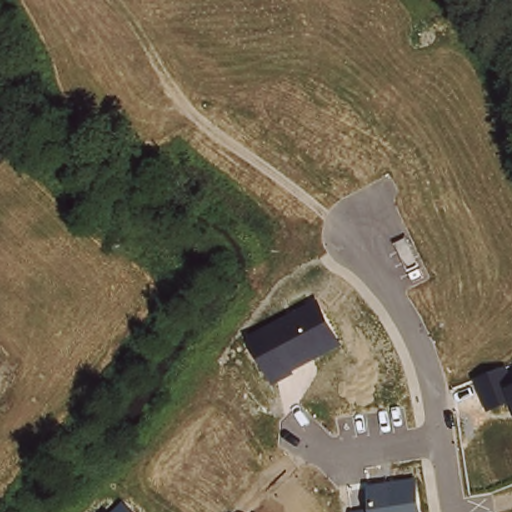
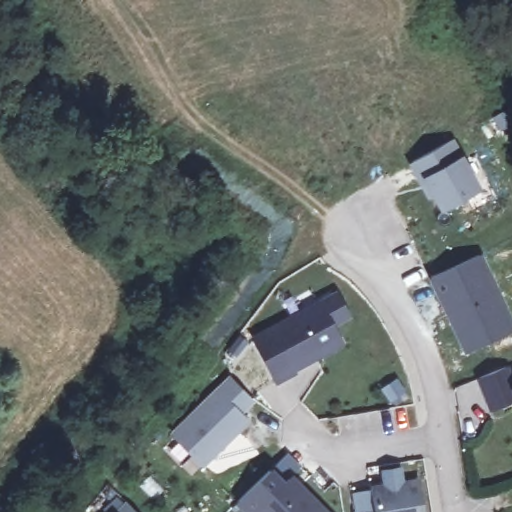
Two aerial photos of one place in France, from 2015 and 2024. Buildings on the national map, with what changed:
new [(442,211),(435,198),(429,200),(410,162),(453,137),(465,157),(483,191),(442,211)]
new [(512,312),(512,321),(469,342),(434,270),(480,247),(512,312)]
unchanged [(345,345),(295,370),(298,375),(275,386),(249,338),(320,298),(345,345)]
unchanged [(475,378),(510,365),(512,371),(512,403),(489,411),(475,378)]
new [(230,375),(256,402),(244,413),(251,421),(202,467),(170,433),(230,375)]
new [(273,470),(287,482),(294,476),(330,512),(244,512),(236,504),(273,470)]
unchanged [(425,512),(353,512),(370,509),(368,486),(419,478),(425,512)]
unchanged [(125,502),(135,512),(116,512),(125,502)]

